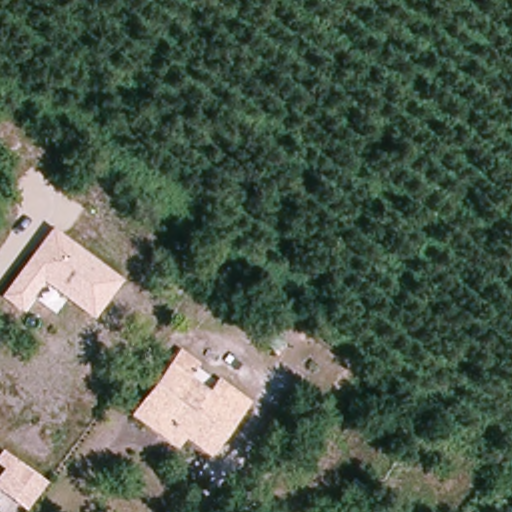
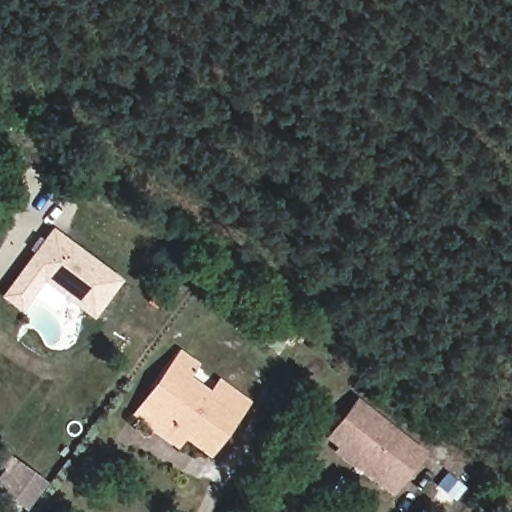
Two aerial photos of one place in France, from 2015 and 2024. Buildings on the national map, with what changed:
unchanged [(93,318),(43,280),(19,311),(0,297),(0,296),(48,227),(122,280),(93,318)]
unchanged [(125,419),(136,405),(174,358),(242,410),(206,459),(175,439),(163,454),(125,419)]
new [(352,469),(333,452),(336,447),(325,439),(357,397),(428,451),(393,497),(355,466),(352,469)]
unchanged [(50,480),(29,509),(0,489),(0,483),(17,458),(50,480)]

